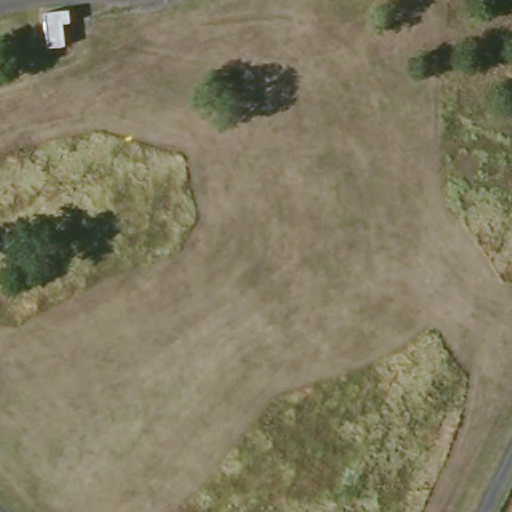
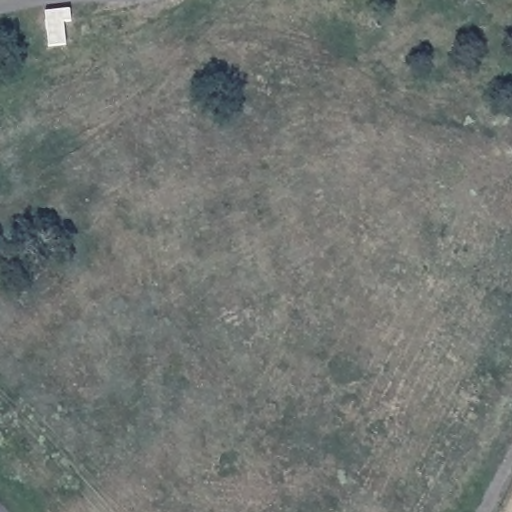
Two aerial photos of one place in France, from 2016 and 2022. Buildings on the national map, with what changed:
unchanged [(62,45),(49,46),(46,11),(70,9),(71,16),(59,17),(62,45)]

